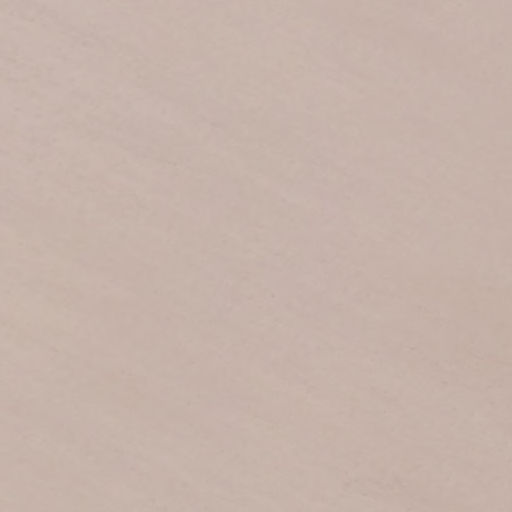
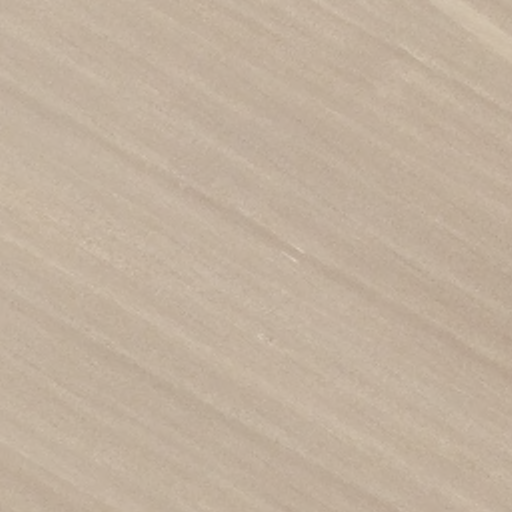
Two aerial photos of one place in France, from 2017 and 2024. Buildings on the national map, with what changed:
[]

